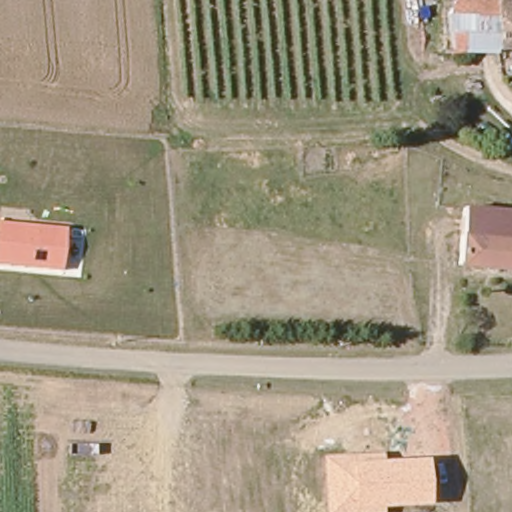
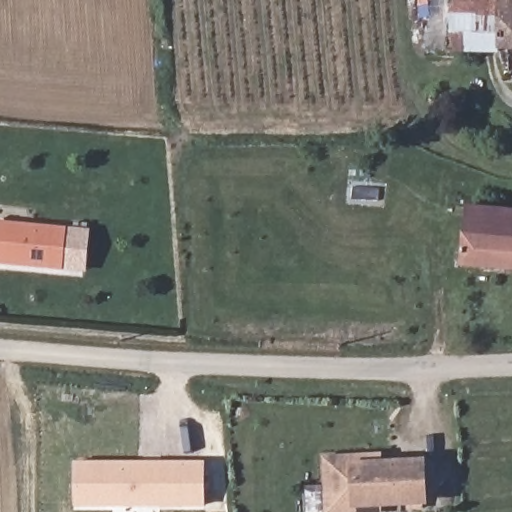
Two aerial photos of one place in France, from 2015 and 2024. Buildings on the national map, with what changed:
unchanged [(444,50),(445,0),(512,0),(512,52),(444,50)]
unchanged [(458,264),(466,204),(512,210),(512,270),(458,264)]
unchanged [(0,222),(66,227),(64,270),(0,264),(0,222)]
unchanged [(426,458),(429,505),(384,507),(383,512),(325,512),(322,456),(382,452),(383,460),(426,458)]
new [(74,461),(206,461),(205,505),(74,506),(74,461)]

